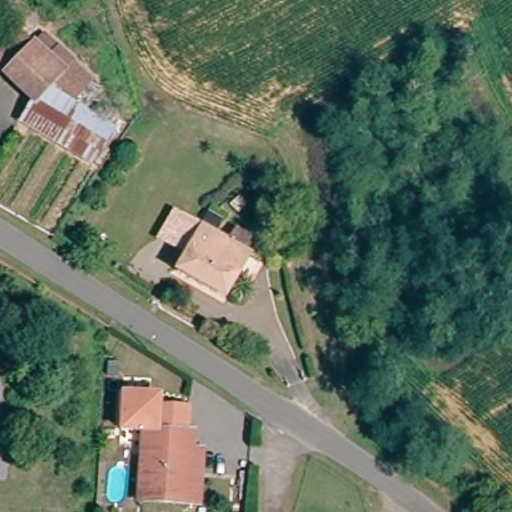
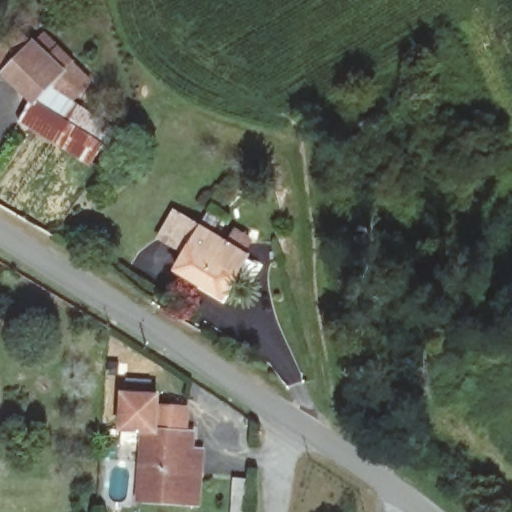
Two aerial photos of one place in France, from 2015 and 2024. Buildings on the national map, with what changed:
unchanged [(32,45),(44,33),(72,60),(92,80),(85,89),(72,102),(118,130),(93,167),(17,125),(32,100),(0,66),(0,50),(16,32),(32,45)]
unchanged [(237,256),(199,236),(212,214),(250,236),(237,256)]
unchanged [(237,256),(248,262),(226,301),(178,273),(199,236),(237,256)]
unchanged [(144,430),(119,428),(122,394),(156,397),(156,407),(186,409),(184,434),(144,431),(144,430)]
unchanged [(204,505),(186,504),(141,501),(144,431),(184,434),(191,435),(190,452),(207,453),(204,505)]

